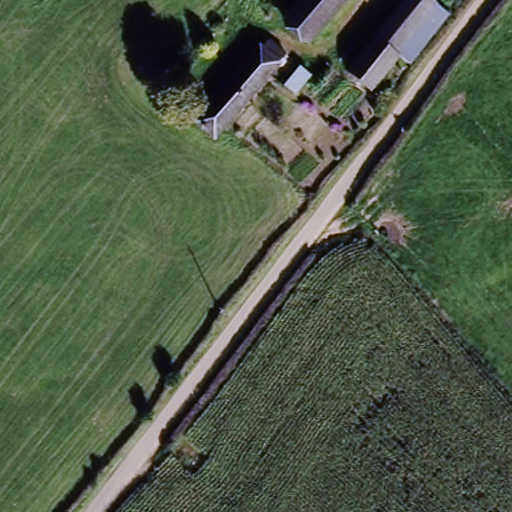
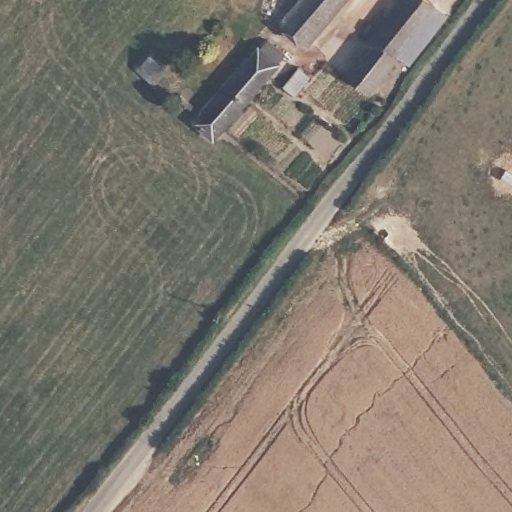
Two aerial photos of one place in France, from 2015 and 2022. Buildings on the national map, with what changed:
unchanged [(307,44),(281,21),(300,0),(346,0),(307,44)]
unchanged [(402,0),(427,0),(431,3),(394,49),(375,32),(402,0)]
unchanged [(345,68),(375,32),(394,49),(397,52),(368,88),(345,68)]
unchanged [(215,134),(211,137),(195,123),(195,120),(265,41),(281,56),(215,134)]
unchanged [(294,96),(282,87),(297,69),(308,79),(294,96)]

